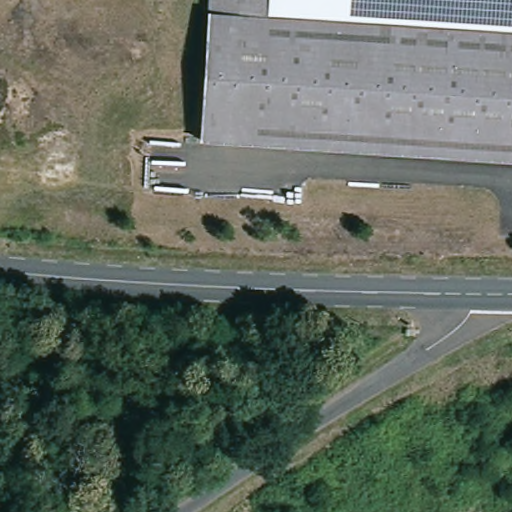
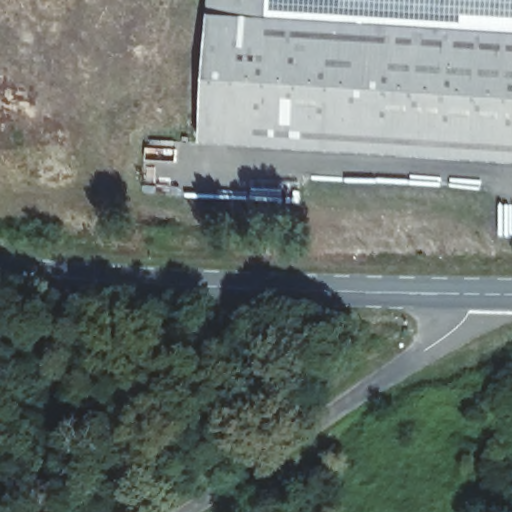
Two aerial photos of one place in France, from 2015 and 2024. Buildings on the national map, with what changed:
unchanged [(512,22),(512,156),(210,152),(210,0),(248,0),(248,24),(512,22)]
unchanged [(248,0),(512,0),(512,22),(248,24),(248,0)]

